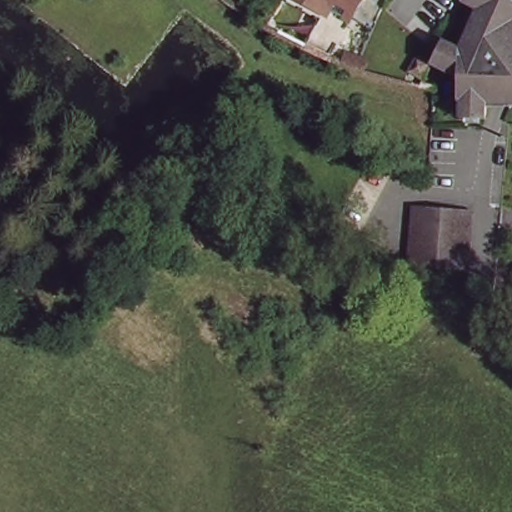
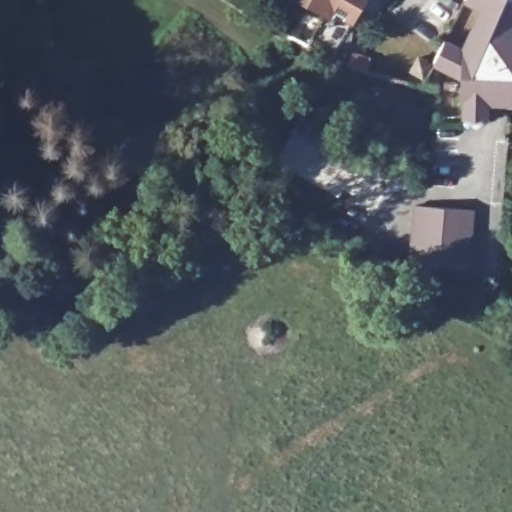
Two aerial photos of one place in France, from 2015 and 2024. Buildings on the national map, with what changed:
unchanged [(273,4),(265,0),(275,0),(273,4)]
unchanged [(318,27),(282,1),(283,0),(363,0),(332,59),(308,49),(318,27)]
unchanged [(460,77),(429,65),(449,22),(452,14),(459,0),(511,0),(512,0),(509,24),(512,28),(512,99),(485,99),(484,118),(459,118),(460,88),(460,77)]
unchanged [(412,265),(418,205),(429,206),(475,210),(472,250),(470,271),(412,265)]

